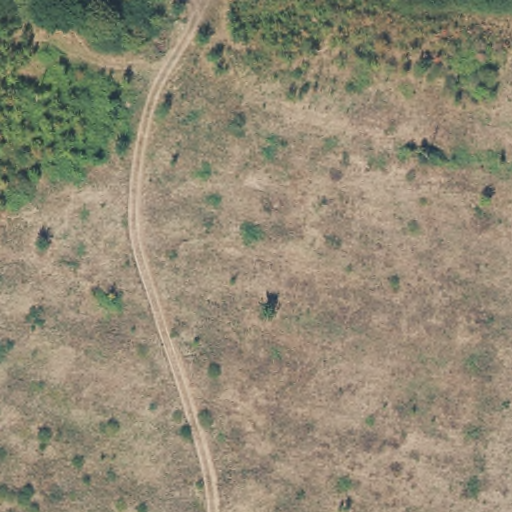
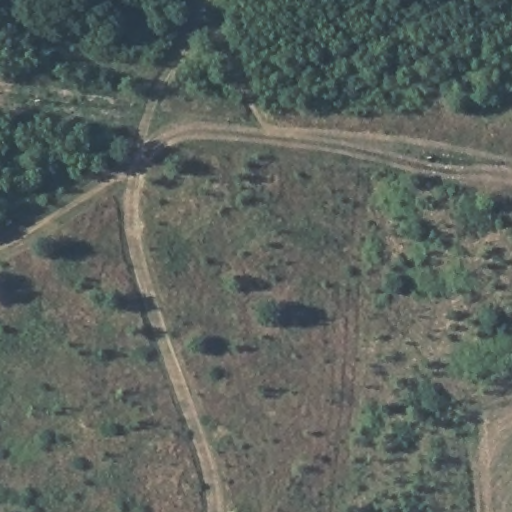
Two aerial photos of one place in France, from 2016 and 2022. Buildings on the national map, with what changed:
[]

